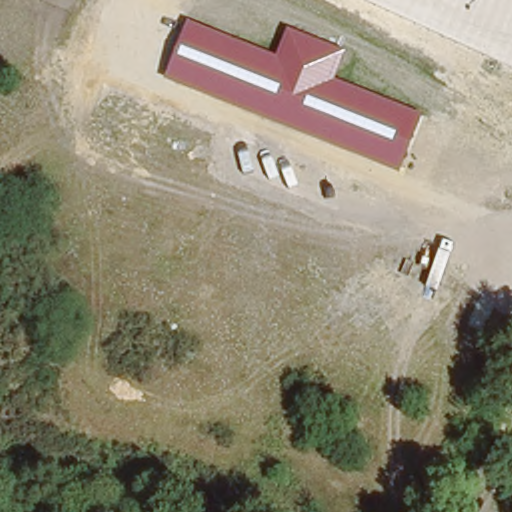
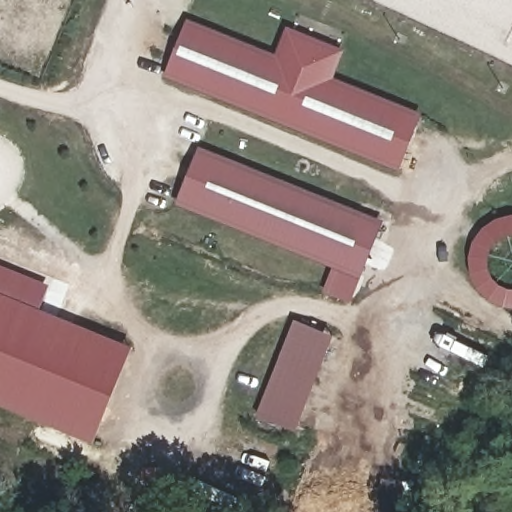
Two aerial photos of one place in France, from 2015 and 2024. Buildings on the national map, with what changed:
unchanged [(400,168),(161,75),(184,17),(276,52),(289,24),(346,50),(335,76),(423,111),(400,168)]
new [(361,279),(174,205),(199,145),(383,219),(361,279)]
new [(488,299),(477,288),(471,274),(469,256),(473,242),(483,227),(496,218),(512,214),(512,234),(505,236),(496,242),(491,249),(488,258),(488,268),(493,277),(499,284),(507,288),(512,288),(512,307),(503,306),(488,299)]
new [(133,344),(94,442),(0,403),(0,291),(133,344)]
new [(333,335),(295,432),(256,416),(294,320),(333,335)]

